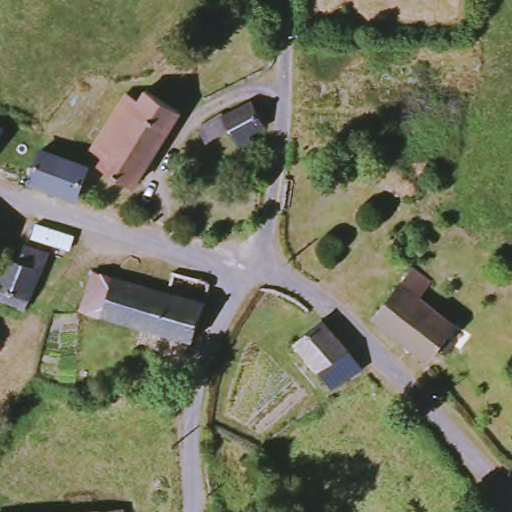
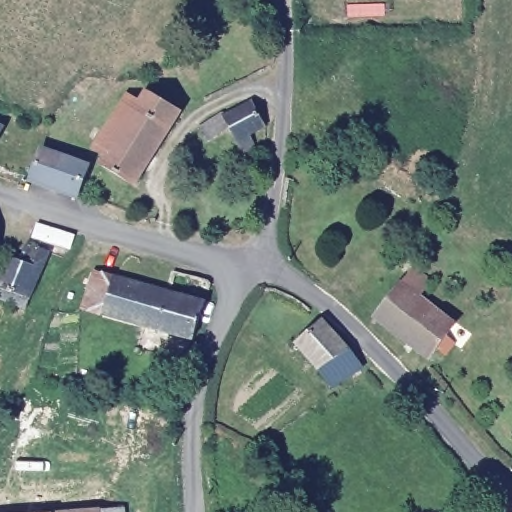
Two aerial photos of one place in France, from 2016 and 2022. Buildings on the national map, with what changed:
unchanged [(101,167),(108,156),(95,147),(130,93),(143,102),(151,91),(185,114),(135,189),(101,167)]
unchanged [(256,100),(267,124),(251,131),(260,150),(241,159),(232,139),(212,149),(201,125),(256,100)]
unchanged [(0,140),(0,128),(5,131),(0,140)]
unchanged [(44,151),(95,170),(87,202),(34,182),(44,151)]
unchanged [(0,276),(7,255),(20,259),(25,243),(47,250),(28,310),(0,300),(0,276)]
unchanged [(91,311),(72,305),(85,268),(103,275),(158,292),(165,272),(211,289),(192,346),(91,311)]
unchanged [(415,268),(433,282),(420,298),(456,326),(446,338),(460,348),(448,363),(435,353),(424,367),(370,325),(402,284),(415,268)]
unchanged [(323,326),(365,367),(339,393),(297,352),(323,326)]
unchanged [(121,512),(96,512),(120,510),(121,512)]

